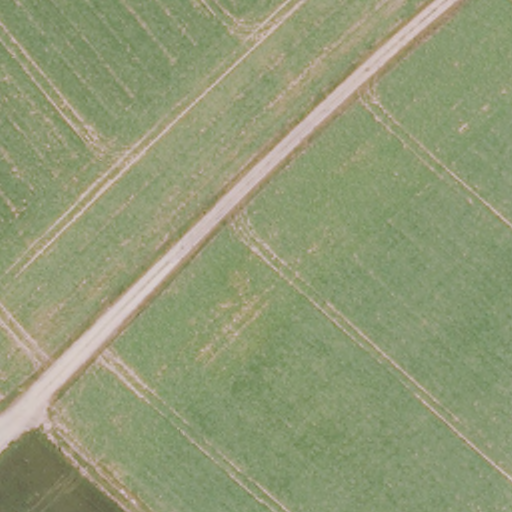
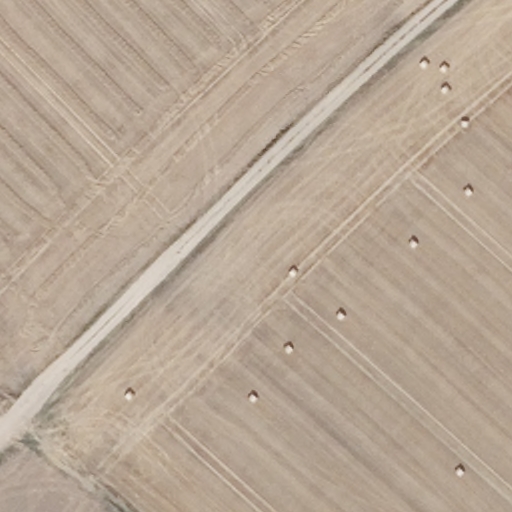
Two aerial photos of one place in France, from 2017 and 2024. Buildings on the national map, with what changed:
[]

